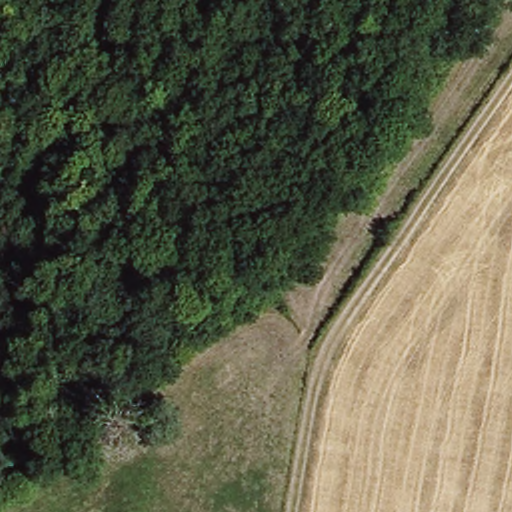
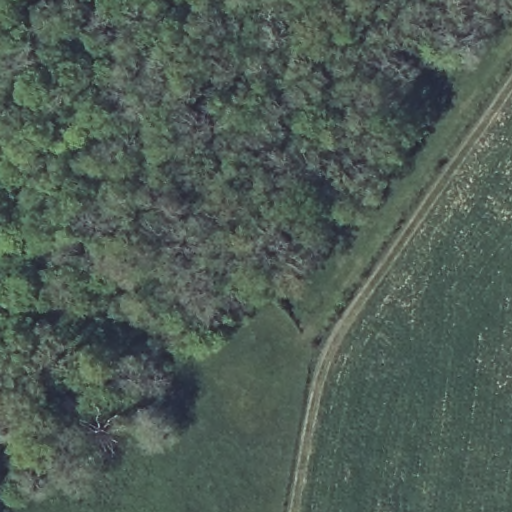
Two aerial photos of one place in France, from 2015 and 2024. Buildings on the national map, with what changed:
[]

